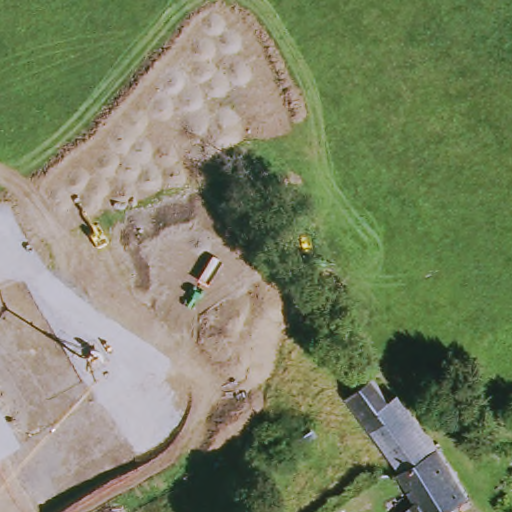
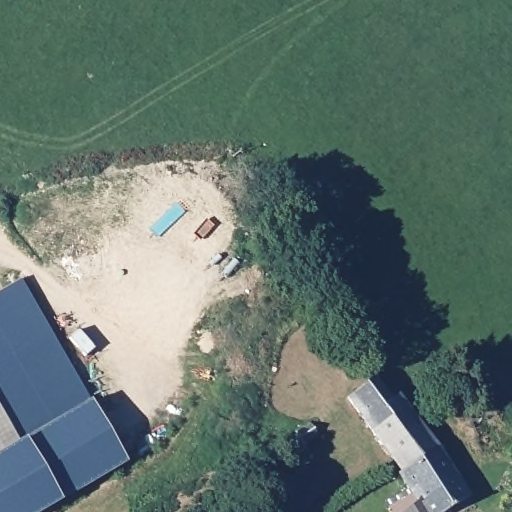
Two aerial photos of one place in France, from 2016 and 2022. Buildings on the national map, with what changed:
new [(125,462),(60,500),(40,512),(0,512),(0,453),(17,443),(0,412),(0,292),(20,280),(90,401),(125,462)]
unchanged [(365,417),(349,394),(372,374),(391,399),(399,394),(437,447),(401,472),(365,417)]
unchanged [(17,443),(0,453),(0,412),(17,443)]
unchanged [(320,430),(303,443),(294,433),(301,425),(309,424),(314,422),(320,430)]
unchanged [(414,501),(397,475),(401,472),(437,447),(465,494),(438,512),(407,512),(405,508),(414,501)]

